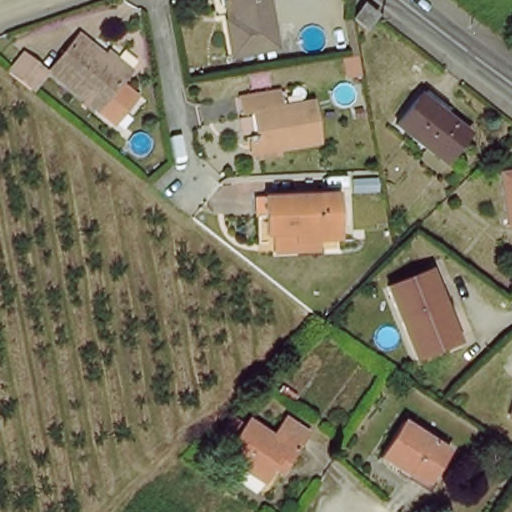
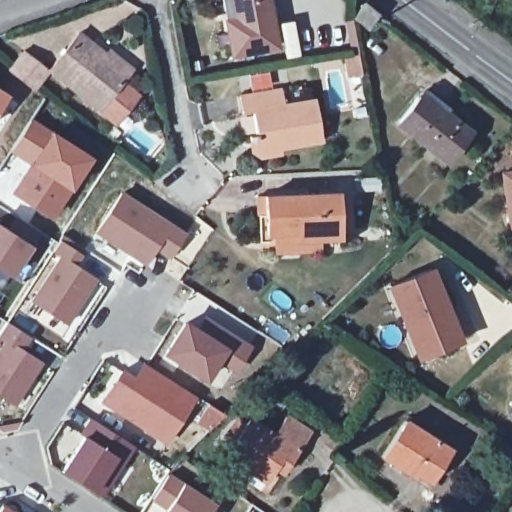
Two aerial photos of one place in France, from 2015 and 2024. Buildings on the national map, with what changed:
unchanged [(233,50),(227,15),(237,13),(235,0),(270,0),(277,42),(233,50)]
unchanged [(353,17),(360,54),(353,55),(347,18),(353,17)]
unchanged [(112,55),(116,51),(138,69),(135,73),(106,110),(56,70),(85,33),(112,55)]
unchanged [(55,71),(40,90),(32,84),(15,71),(30,51),(55,71)]
unchanged [(362,71),(349,73),(347,60),(360,57),(362,71)]
new [(0,106),(0,88),(8,93),(0,106)]
unchanged [(267,157),(258,150),(255,136),(263,135),(259,112),(250,114),(247,97),(288,90),(290,106),(322,100),(328,141),(287,148),(288,153),(267,157)]
unchanged [(450,110),(452,107),(477,126),(453,157),(403,119),(425,90),(450,110)]
new [(26,164),(8,153),(30,117),(92,156),(49,219),(7,192),(26,164)]
unchanged [(508,173),(512,173),(512,198),(508,173)]
new [(122,192),(187,232),(170,260),(155,250),(146,266),(94,232),(122,192)]
unchanged [(275,251),(275,234),(267,235),(260,235),(258,196),(265,196),(339,193),(342,239),(320,240),(320,249),(275,251)]
new [(16,216),(42,234),(35,245),(12,278),(0,271),(0,225),(5,228),(16,216)]
new [(92,276),(62,319),(27,295),(57,253),(92,276)]
unchanged [(395,286),(437,269),(451,302),(440,307),(456,346),(425,359),(395,286)]
new [(185,319),(197,327),(207,315),(253,345),(235,372),(220,363),(206,383),(163,355),(185,319)]
new [(0,341),(0,334),(7,322),(31,338),(22,348),(44,362),(15,407),(0,397),(0,345),(2,342),(0,341)]
new [(122,367),(135,375),(143,362),(198,397),(167,446),(100,404),(122,367)]
unchanged [(298,396),(295,402),(282,393),(285,387),(298,396)]
unchanged [(281,468),(272,483),(230,455),(232,453),(223,448),(244,417),(252,423),(257,416),(280,435),(293,416),(317,431),(294,465),(288,473),(281,468)]
new [(103,496),(94,493),(60,470),(83,436),(80,435),(90,419),(135,448),(103,496)]
unchanged [(430,483),(415,473),(413,476),(382,456),(405,420),(452,449),(430,483)]
new [(151,501),(167,472),(217,503),(211,512),(163,512),(164,509),(151,501)]
new [(5,504),(18,512),(0,512),(5,504)]

